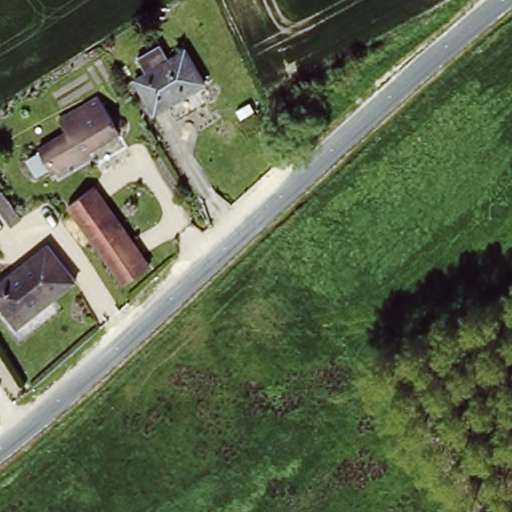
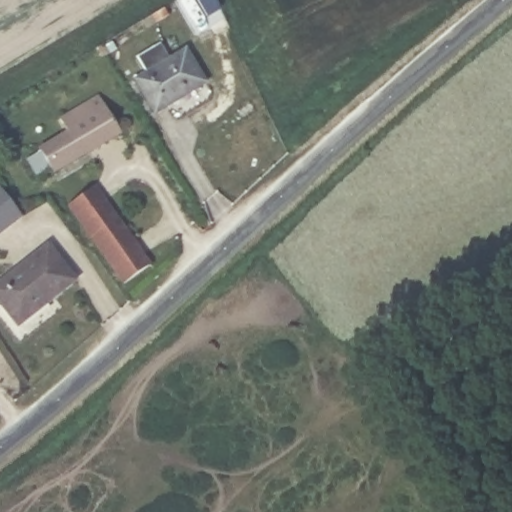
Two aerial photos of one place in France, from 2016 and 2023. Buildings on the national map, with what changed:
unchanged [(185,47),(203,85),(151,113),(128,74),(146,66),(142,58),(139,52),(165,40),(167,46),(171,53),(185,47)]
unchanged [(100,93),(120,132),(27,183),(14,161),(38,148),(35,141),(67,125),(60,111),(100,93)]
unchanged [(151,260),(125,281),(65,203),(90,184),(151,260)]
unchanged [(2,225),(0,220),(0,191),(1,190),(17,220),(2,225)]
unchanged [(0,305),(0,277),(41,245),(70,283),(46,303),(15,326),(10,318),(0,305)]

